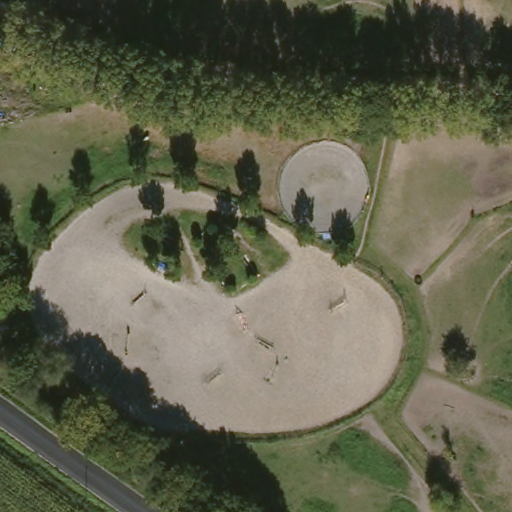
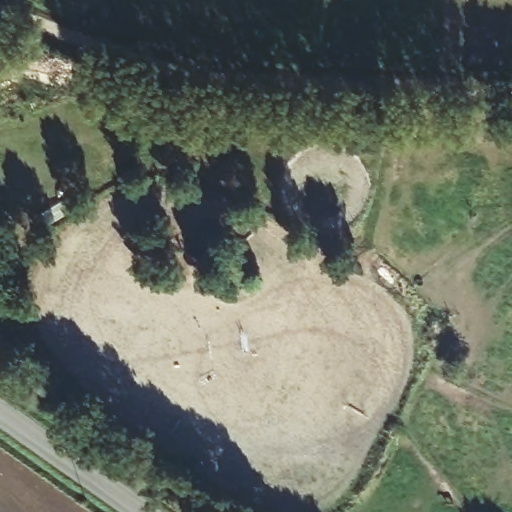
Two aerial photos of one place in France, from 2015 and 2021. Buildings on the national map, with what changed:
[]

